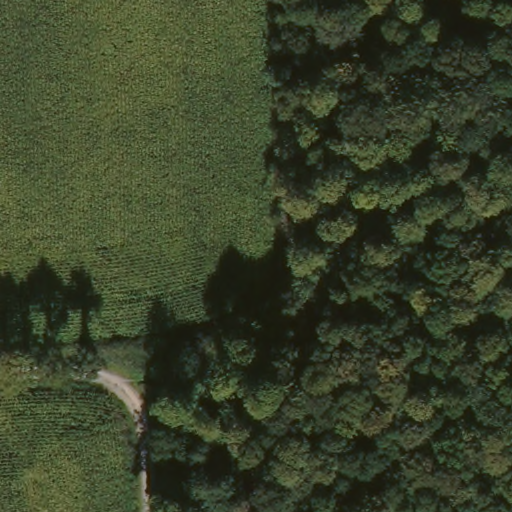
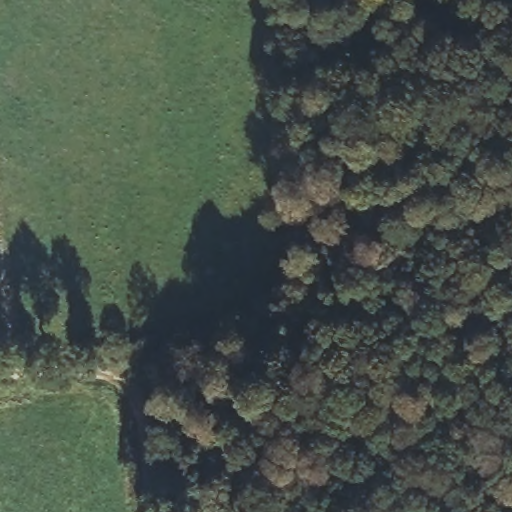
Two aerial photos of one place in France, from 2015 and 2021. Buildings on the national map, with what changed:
[]

